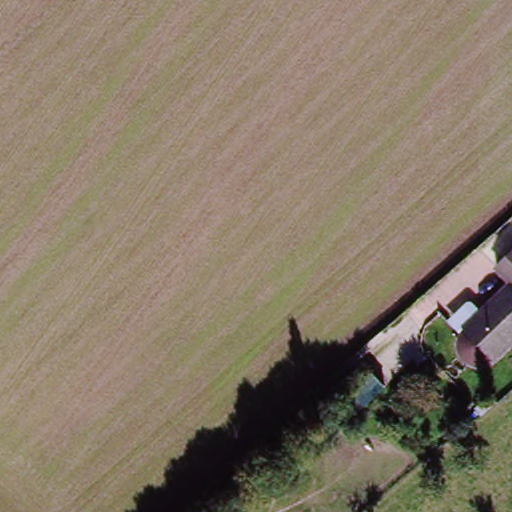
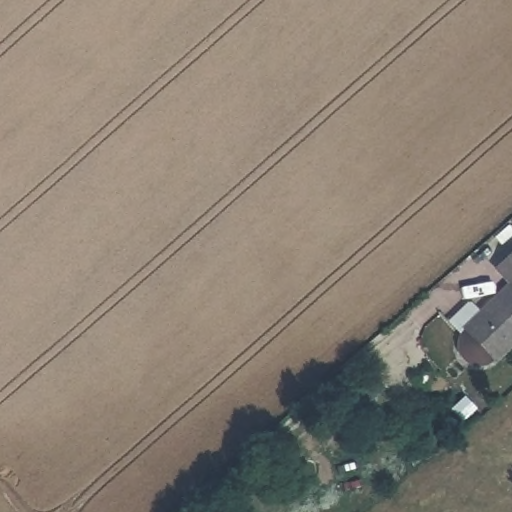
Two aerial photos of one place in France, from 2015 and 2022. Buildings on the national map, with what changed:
unchanged [(463,356),(453,344),(457,328),(510,278),(497,262),(512,248),(512,340),(489,360),(463,356)]

